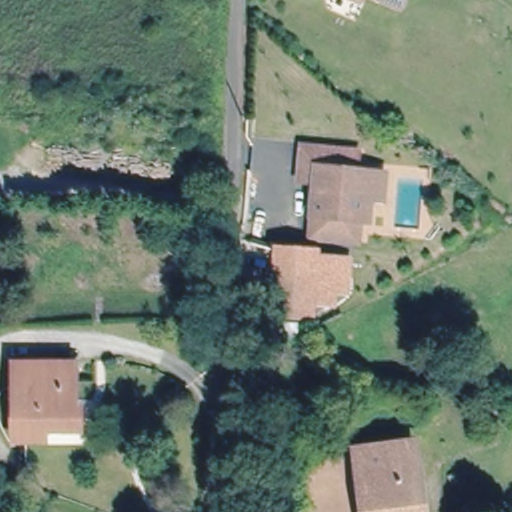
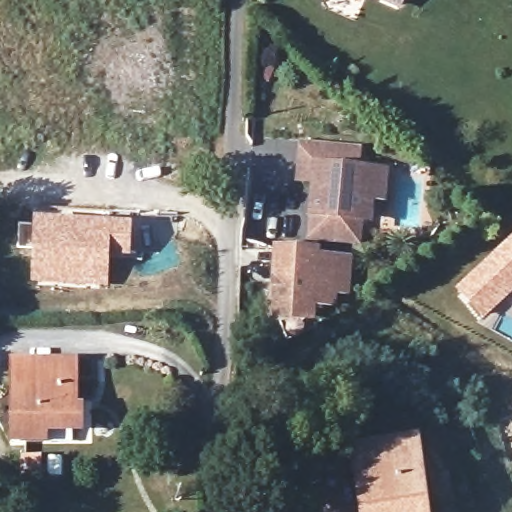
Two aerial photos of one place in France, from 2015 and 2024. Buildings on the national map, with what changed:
unchanged [(360,209),(357,231),(311,226),(317,170),(300,169),(302,135),(337,139),(356,141),(355,161),(364,162),(385,165),(382,187),(370,186),(367,210),(360,209)]
new [(131,223),(130,257),(110,256),(109,286),(31,282),(35,216),(131,223)]
new [(512,237),(512,296),(483,320),(455,287),(512,237)]
unchanged [(317,247),(317,253),(337,255),(333,297),(274,293),(277,245),(317,247)]
unchanged [(80,429),(44,430),(44,440),(15,440),(15,373),(15,364),(31,364),(53,364),(75,365),(75,373),(75,398),(76,412),(80,412),(80,429)]
unchanged [(415,437),(425,512),(368,512),(358,445),(415,437)]

